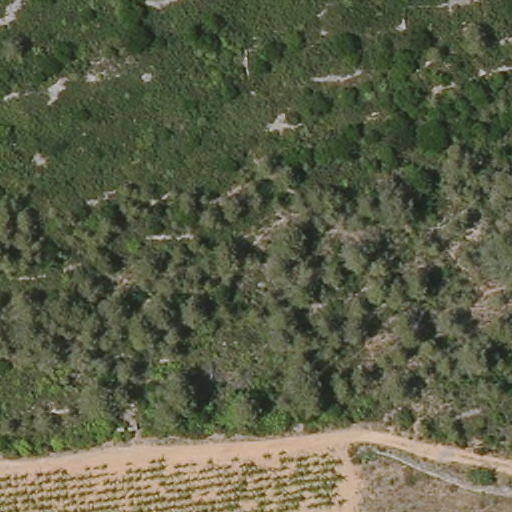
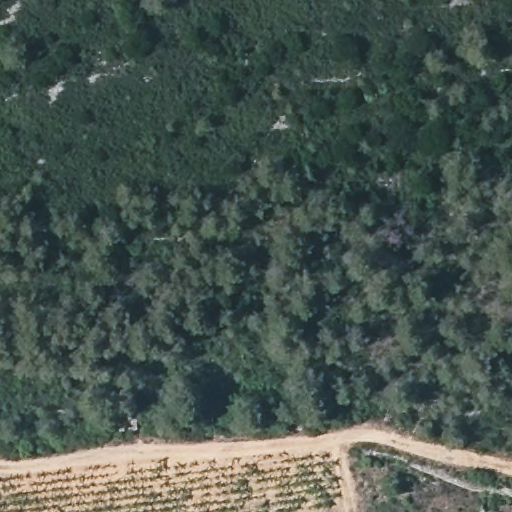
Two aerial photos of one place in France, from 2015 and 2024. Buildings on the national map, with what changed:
unchanged [(112,403),(140,402),(140,427),(116,430),(112,403)]

